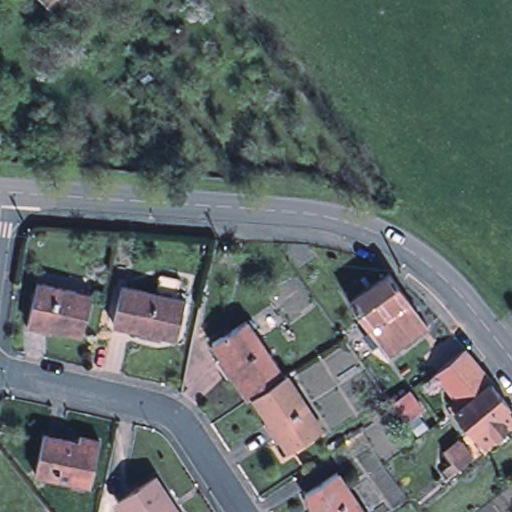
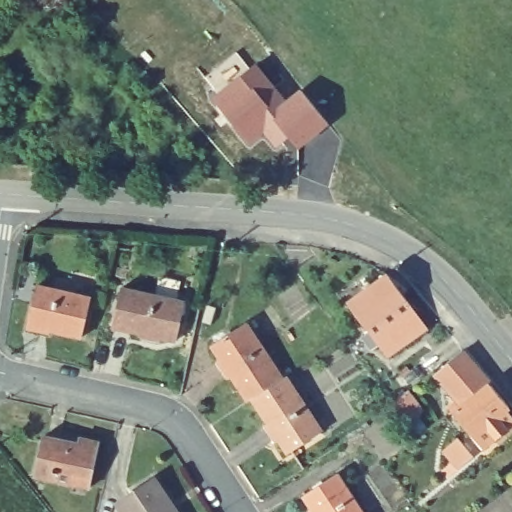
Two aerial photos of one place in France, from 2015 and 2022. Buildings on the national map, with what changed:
unchanged [(46,10),(35,0),(57,0),(46,10)]
new [(286,100),(300,89),(329,125),(298,150),(288,138),(276,149),(264,134),(250,145),(211,99),(256,64),(286,100)]
unchanged [(386,354),(345,299),(384,272),(425,323),(386,354)]
unchanged [(175,337),(159,335),(157,341),(138,337),(140,331),(112,326),(118,286),(151,293),(155,273),(176,278),(172,297),(180,299),(175,337)]
unchanged [(92,297),(83,336),(53,330),(51,336),(29,331),(39,285),(92,297)]
unchanged [(286,375),(253,395),(251,397),(235,372),(230,376),(220,360),(225,357),(215,342),(250,320),(286,375)]
unchanged [(435,370),(462,348),(489,382),(461,403),(440,376),(435,370)]
unchanged [(323,430),(291,452),(281,438),(275,442),(264,425),(269,421),(253,395),(286,375),(289,373),(323,430)]
unchanged [(512,416),(512,419),(480,445),(453,410),(461,403),(489,382),(507,404),(505,406),(512,416)]
unchanged [(388,412),(403,401),(418,420),(402,433),(393,419),(388,412)]
unchanged [(80,440),(81,435),(101,440),(90,487),(36,473),(46,432),(80,440)]
unchanged [(470,454),(451,470),(445,462),(448,460),(442,452),(458,440),(470,454)]
unchanged [(313,506),(305,493),(339,471),(366,512),(308,512),(307,510),(313,506)]
unchanged [(176,512),(123,512),(117,503),(155,478),(176,512)]

